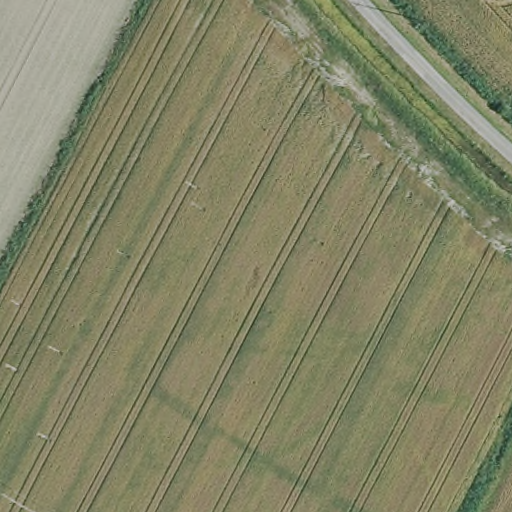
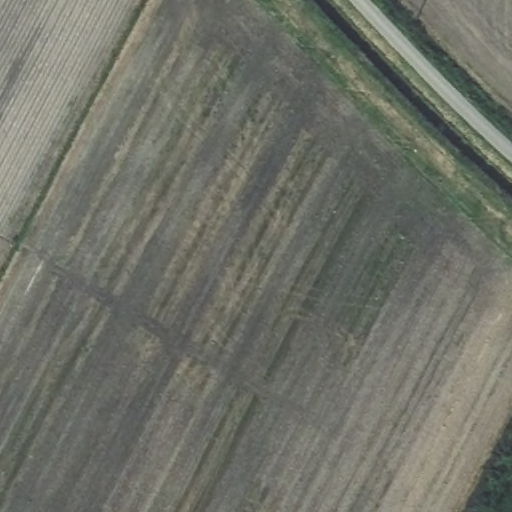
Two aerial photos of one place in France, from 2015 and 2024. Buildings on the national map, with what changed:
[]

